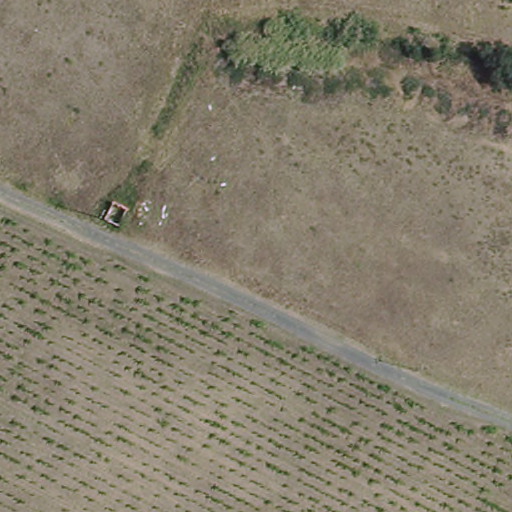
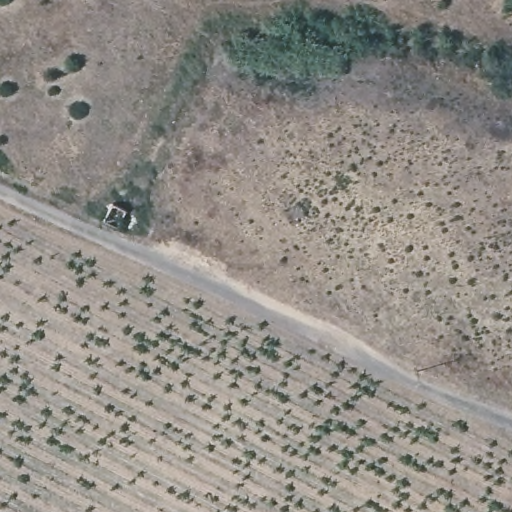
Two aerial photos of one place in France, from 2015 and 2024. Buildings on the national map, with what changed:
unchanged [(119,226),(105,218),(113,204),(126,212),(119,226)]

